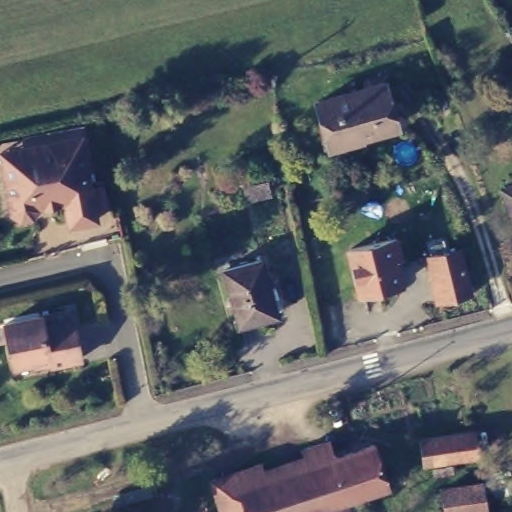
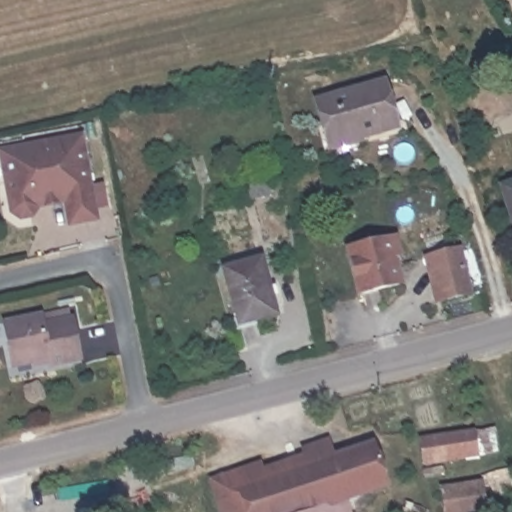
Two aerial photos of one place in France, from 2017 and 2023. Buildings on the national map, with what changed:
unchanged [(512,76),(512,111),(487,117),(478,84),(512,76)]
unchanged [(387,78),(400,123),(334,140),(322,98),(387,78)]
unchanged [(49,203),(48,197),(36,199),(38,207),(31,216),(21,218),(13,212),(3,161),(1,151),(23,147),(37,145),(81,136),(83,145),(96,219),(70,224),(66,200),(49,203)]
unchanged [(512,179),(512,222),(512,223),(499,183),(512,179)]
unchanged [(389,238),(394,255),(387,257),(394,282),(355,292),(344,249),(389,238)]
unchanged [(467,247),(477,294),(436,304),(425,256),(467,247)]
unchanged [(266,257),(279,311),(247,319),(231,264),(266,257)]
unchanged [(64,315),(65,324),(68,324),(76,363),(45,370),(44,364),(8,371),(0,328),(37,321),(64,315)]
unchanged [(473,434),(476,453),(427,461),(424,442),(473,434)]
unchanged [(260,479),(303,466),(300,448),(319,443),(324,459),(377,443),(389,484),(367,489),(372,503),(353,508),(354,512),(271,512),(260,479)]
unchanged [(209,478),(220,475),(256,464),(260,479),(271,512),(219,512),(209,478)]
unchanged [(488,478),(492,512),(443,512),(439,484),(488,478)]

